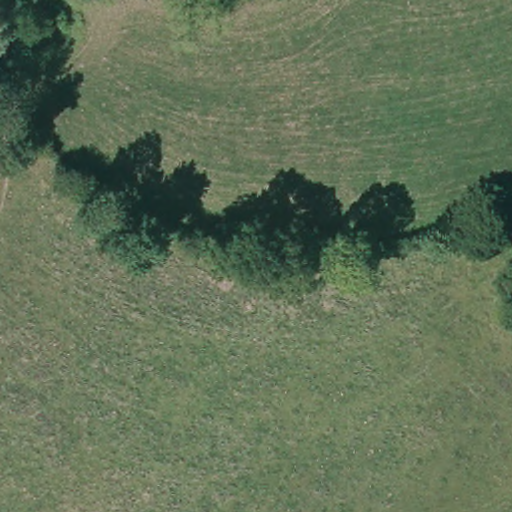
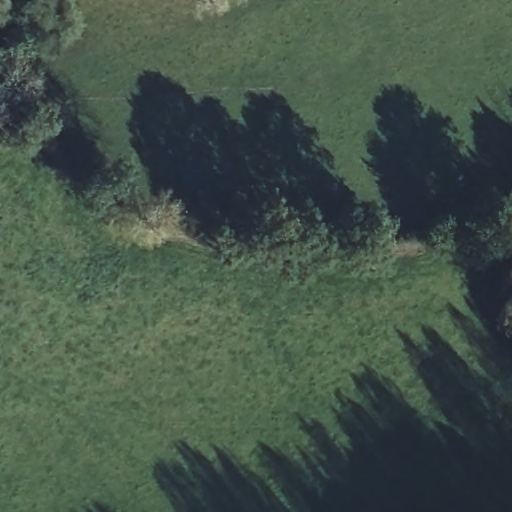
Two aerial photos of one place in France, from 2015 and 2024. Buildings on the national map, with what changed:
[]

